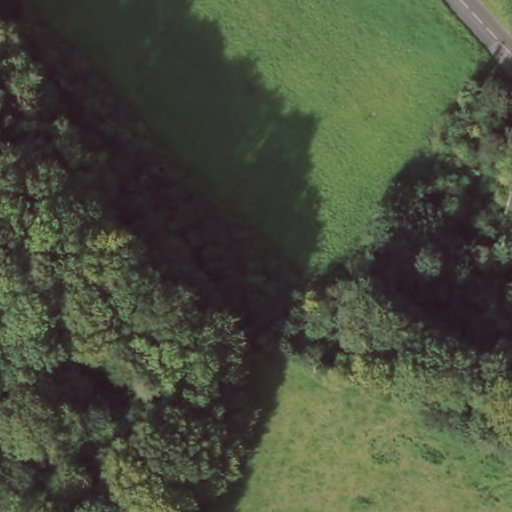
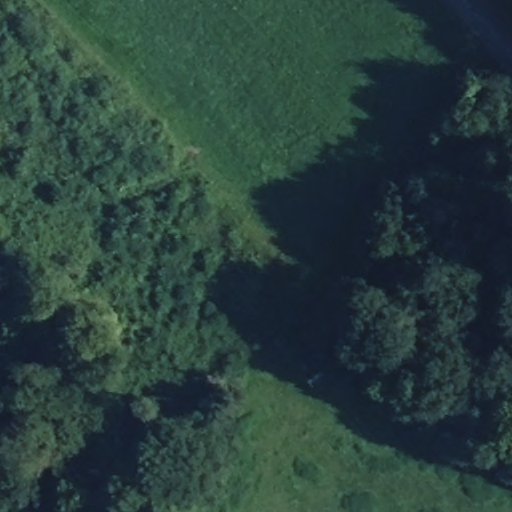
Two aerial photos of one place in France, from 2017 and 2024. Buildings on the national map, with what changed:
unchanged [(259,246),(262,238),(271,243),(267,251),(259,246)]

